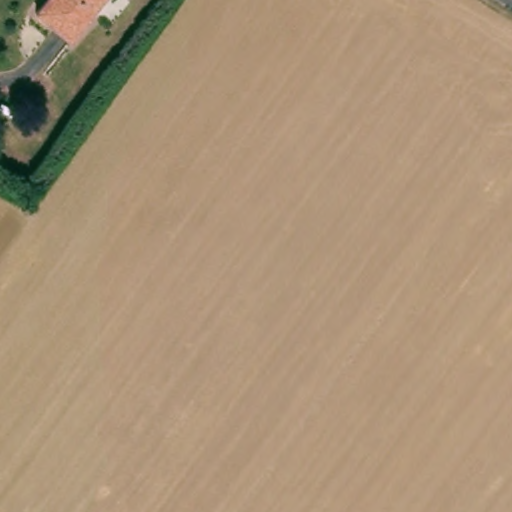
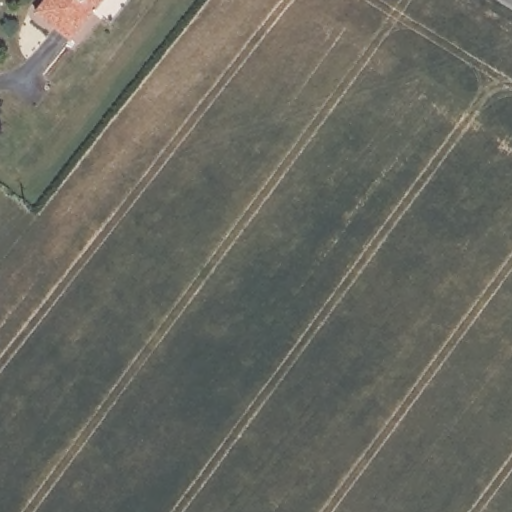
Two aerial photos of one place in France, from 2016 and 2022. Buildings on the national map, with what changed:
unchanged [(45,0),(115,0),(80,45),(36,11),(45,0)]

